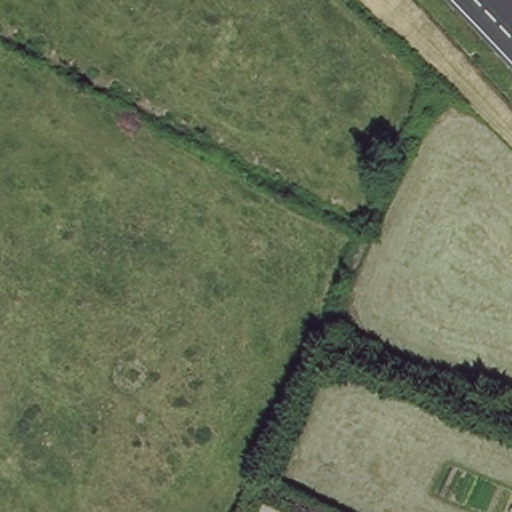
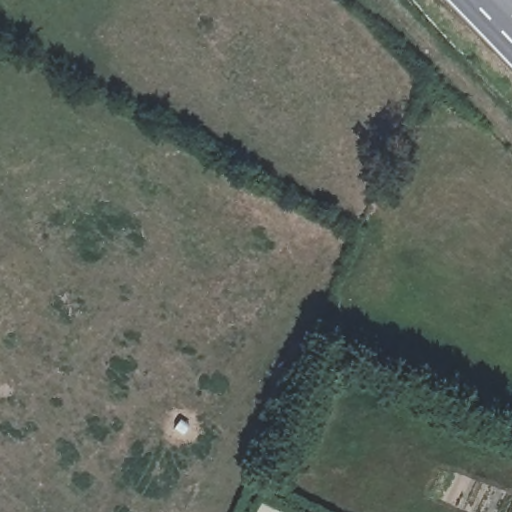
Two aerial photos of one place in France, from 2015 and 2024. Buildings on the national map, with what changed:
[]

